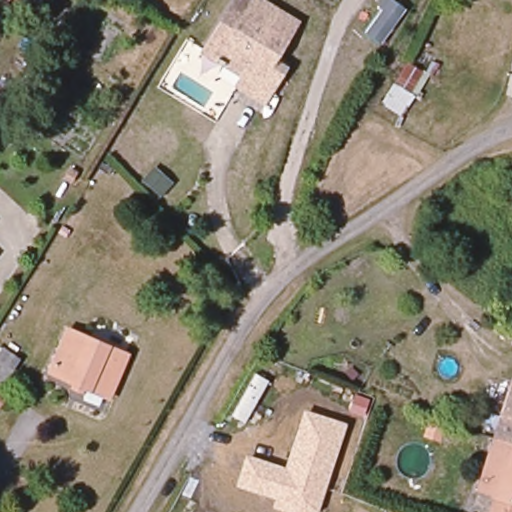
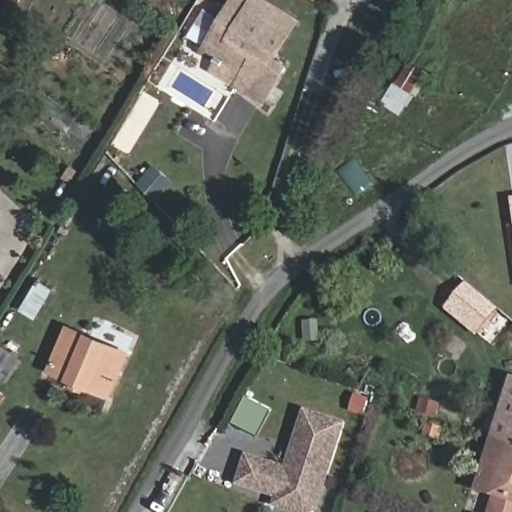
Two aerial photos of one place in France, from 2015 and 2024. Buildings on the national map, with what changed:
unchanged [(254,0),(265,0),(293,18),(272,57),(283,64),(262,101),(235,84),(241,74),(202,49),(232,0),(247,0),(252,4),(254,0)]
new [(510,199),(512,198),(512,212),(510,199)]
new [(476,337),(443,309),(467,284),(498,309),(476,337)]
unchanged [(50,369),(71,327),(128,357),(107,398),(50,369)]
unchanged [(512,379),(512,512),(483,512),(488,493),(474,487),(511,379),(512,379)]
unchanged [(318,511),(316,512),(284,512),(271,509),(273,499),(235,486),(245,454),(285,466),(303,409),(348,422),(318,511)]

